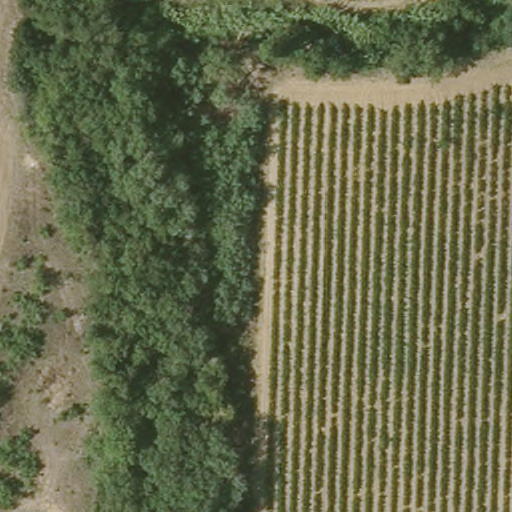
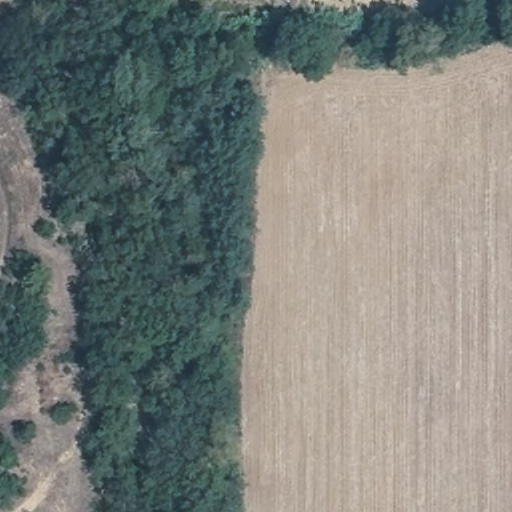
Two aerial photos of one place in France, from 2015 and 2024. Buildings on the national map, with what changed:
[]

